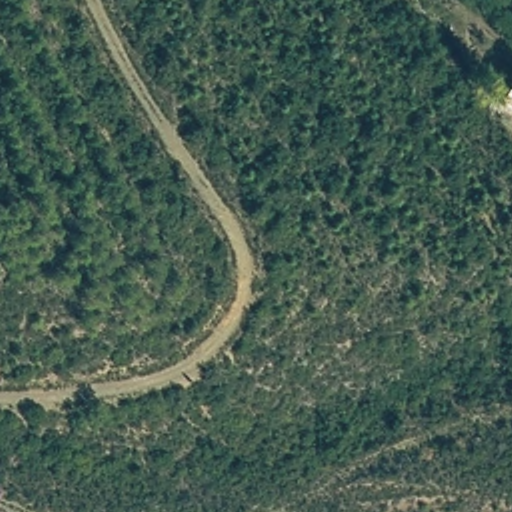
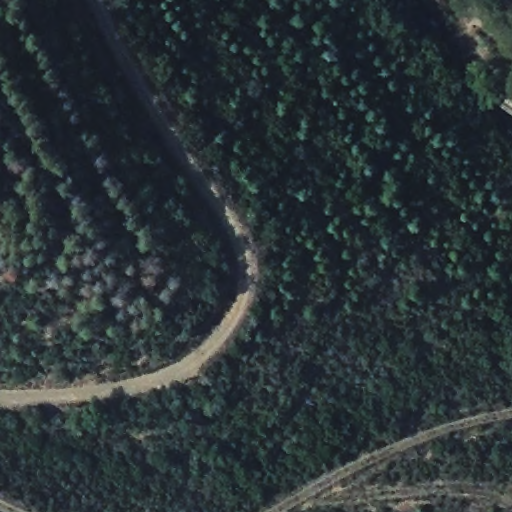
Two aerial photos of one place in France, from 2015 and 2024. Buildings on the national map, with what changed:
unchanged [(512,104),(506,100),(512,93),(512,104)]

